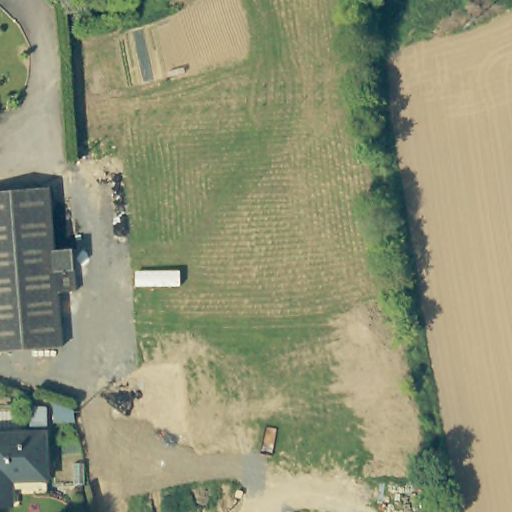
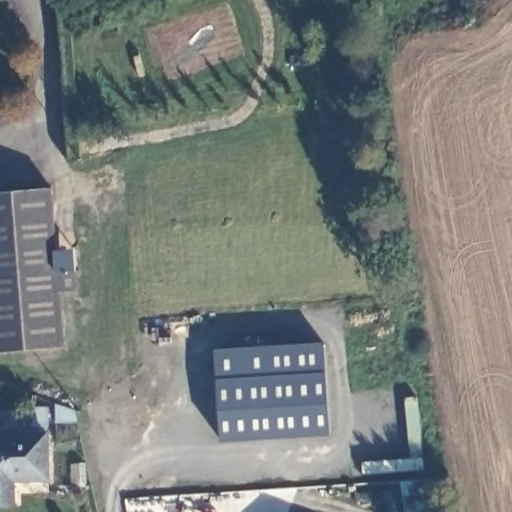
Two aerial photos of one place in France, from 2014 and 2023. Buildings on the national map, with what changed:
unchanged [(50,183),(51,187),(55,241),(56,246),(69,245),(74,245),(78,286),(64,288),(59,288),(63,338),(64,342),(0,348),(0,187),(46,184),(50,183)]
new [(220,443),(214,347),(326,340),(331,433),(220,443)]
unchanged [(14,505),(0,506),(0,434),(42,433),(46,433),(48,480),(13,481),(14,505)]

